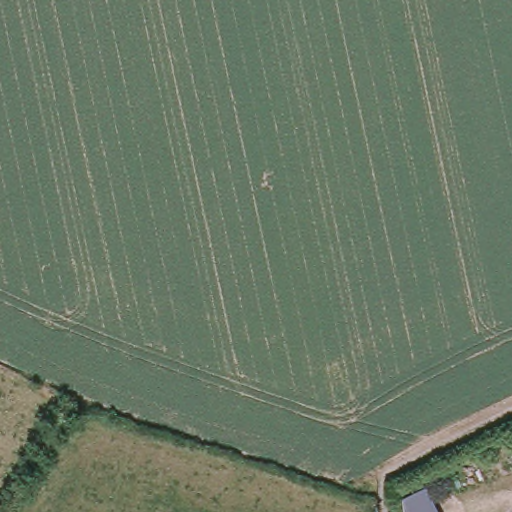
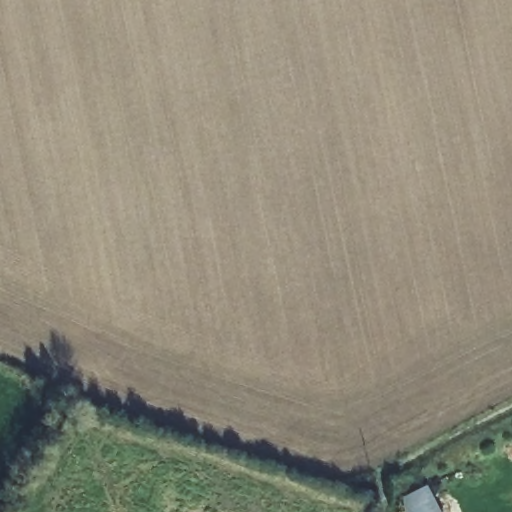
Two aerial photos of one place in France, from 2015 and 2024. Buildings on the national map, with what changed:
unchanged [(428,512),(398,512),(398,510),(420,498),(428,512)]

